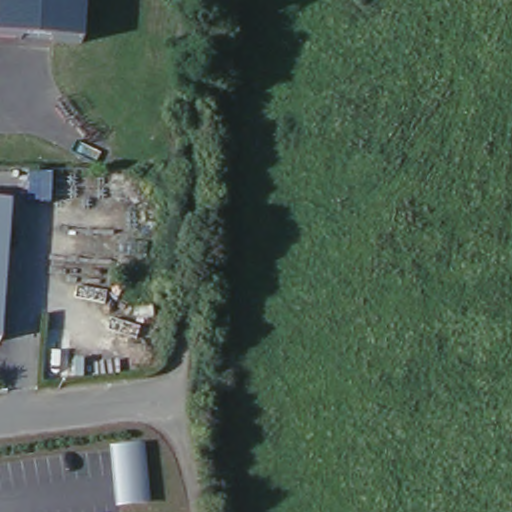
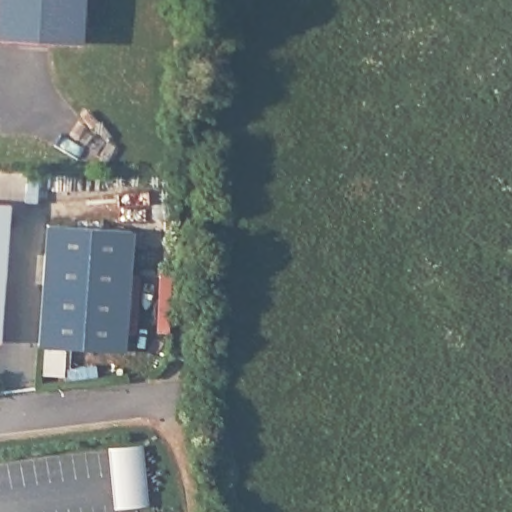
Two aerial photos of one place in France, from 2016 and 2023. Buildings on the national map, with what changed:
unchanged [(82,37),(0,35),(0,0),(84,0),(82,37)]
new [(52,203),(27,202),(28,169),(54,170),(52,203)]
unchanged [(8,218),(0,217),(0,199),(9,200),(8,218)]
unchanged [(0,339),(0,217),(8,218),(0,339)]
new [(133,230),(129,344),(41,340),(45,224),(133,230)]
unchanged [(140,443),(145,498),(120,501),(114,446),(140,443)]

